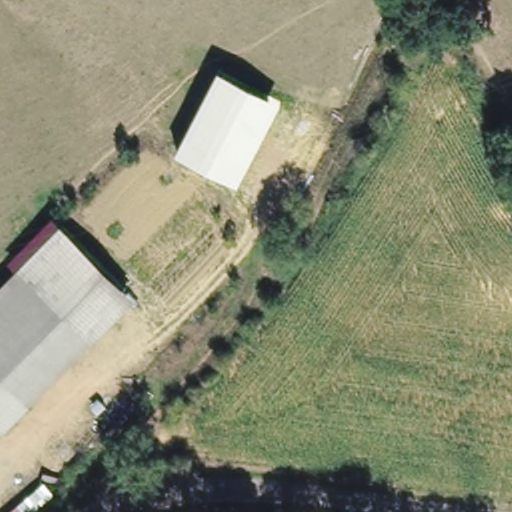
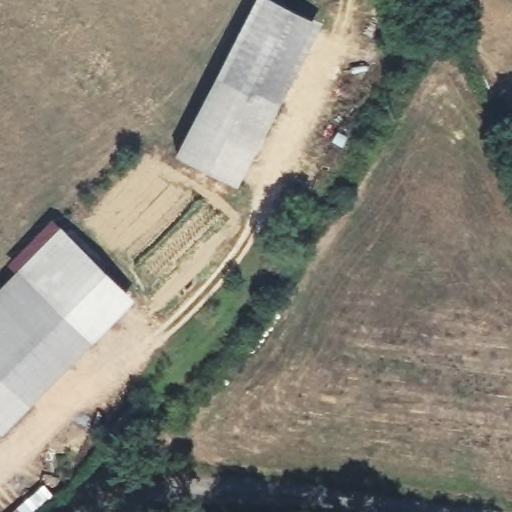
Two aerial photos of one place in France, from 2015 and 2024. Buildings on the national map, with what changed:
new [(276,0),(321,23),(280,104),(279,103),(217,71),(255,0),(276,0)]
unchanged [(279,103),(237,186),(175,155),(217,71),(279,103)]
unchanged [(140,282),(86,335),(12,260),(63,206),(140,282)]
unchanged [(86,335),(1,419),(0,417),(0,272),(12,260),(86,335)]

